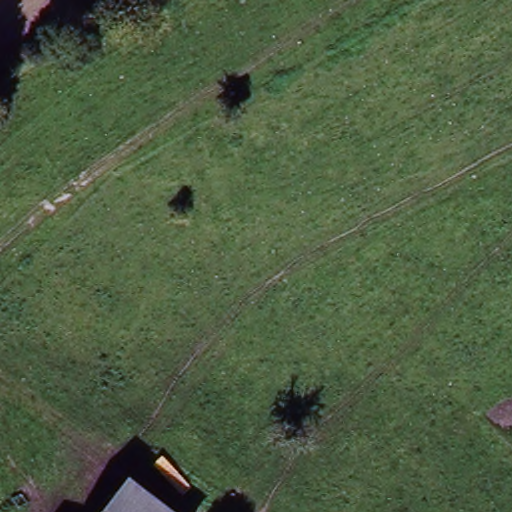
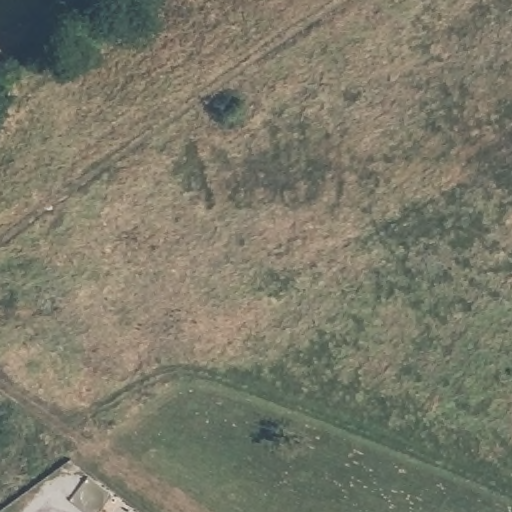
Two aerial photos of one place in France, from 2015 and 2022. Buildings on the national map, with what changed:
demolished [(173,512),(94,512),(123,473),(173,512)]

